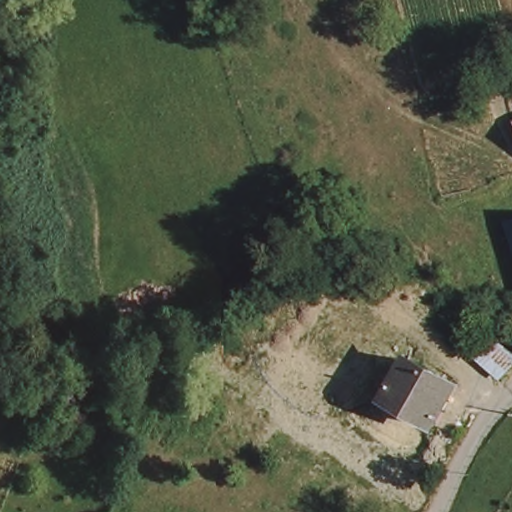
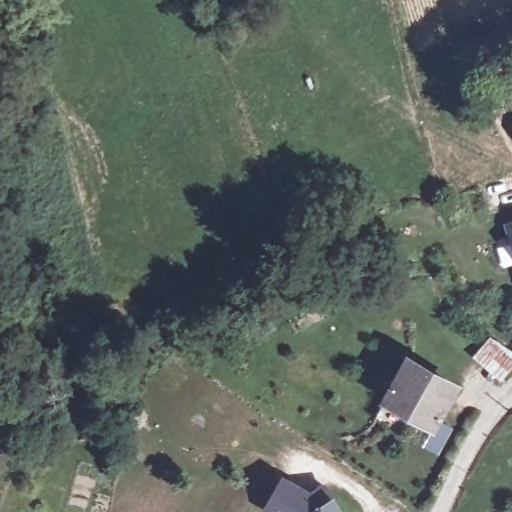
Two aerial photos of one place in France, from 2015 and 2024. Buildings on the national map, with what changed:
unchanged [(506,250),(501,235),(512,232),(512,269),(506,250)]
unchanged [(452,388),(429,427),(381,401),(404,361),(452,388)]
new [(283,473),(334,497),(344,512),(266,512),(263,510),(283,473)]

